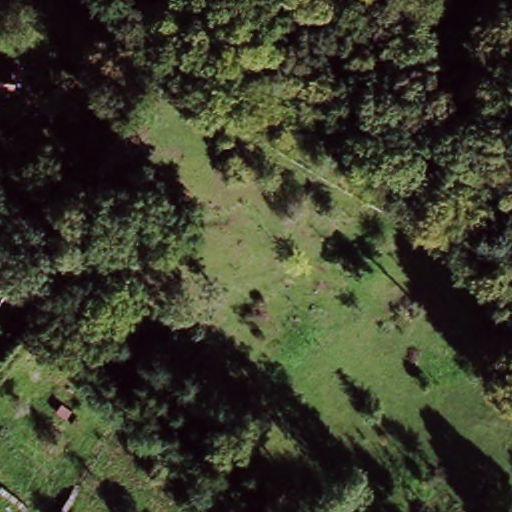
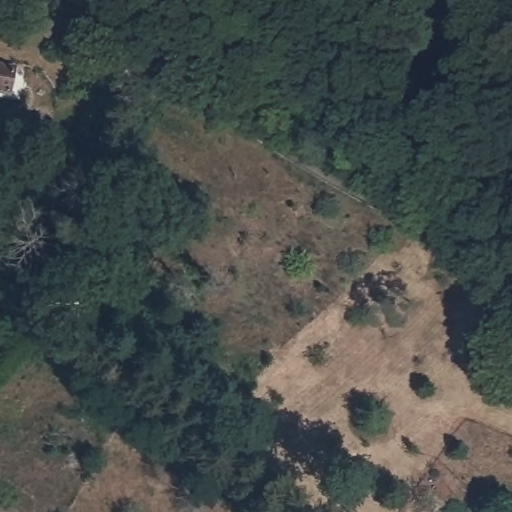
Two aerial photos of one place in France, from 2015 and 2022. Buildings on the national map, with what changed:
unchanged [(8,98),(0,97),(0,68),(13,71),(8,98)]

